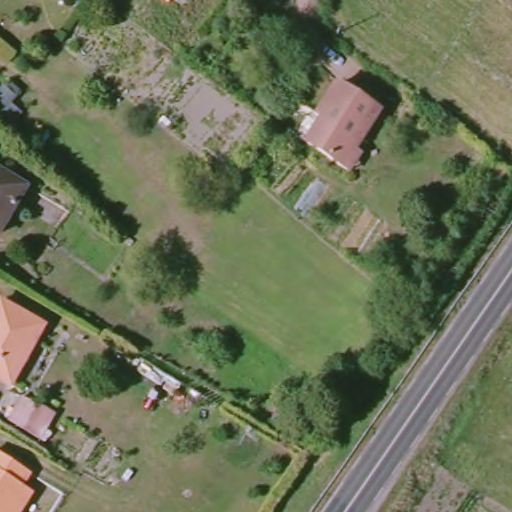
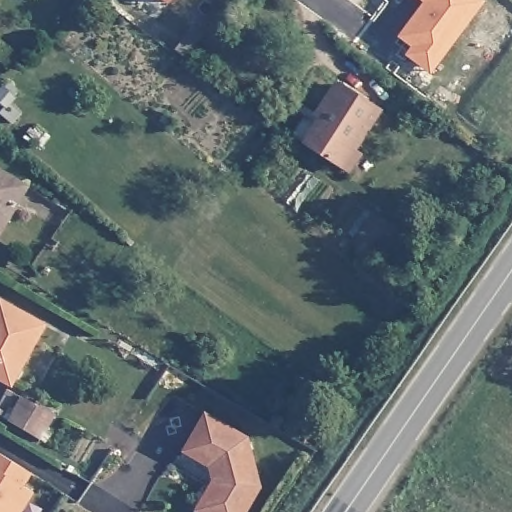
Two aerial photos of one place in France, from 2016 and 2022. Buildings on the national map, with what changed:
unchanged [(166,2),(163,0),(169,0),(166,2)]
new [(485,2),(430,74),(405,57),(411,47),(398,37),(422,2),(420,0),(483,0),(485,2)]
unchanged [(296,133),(309,114),(323,124),(327,118),(320,113),(340,84),(383,113),(347,167),(296,133)]
unchanged [(0,227),(0,173),(25,188),(0,227)]
unchanged [(0,301),(2,297),(44,323),(36,337),(10,381),(0,376),(0,301)]
unchanged [(50,410),(36,432),(6,414),(20,392),(50,410)]
new [(248,436),(260,487),(246,512),(195,512),(212,481),(209,468),(181,451),(205,411),(248,436)]
unchanged [(23,486),(34,493),(21,512),(0,512),(0,456),(31,476),(23,486)]

